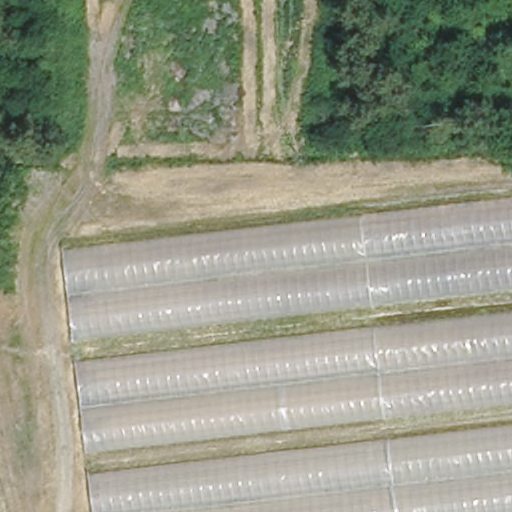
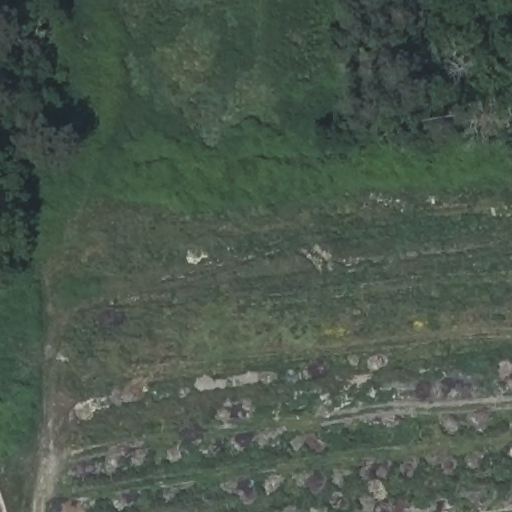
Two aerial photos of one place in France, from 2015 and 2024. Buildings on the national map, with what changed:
demolished [(65,252),(512,199),(512,512),(97,512),(65,252)]

